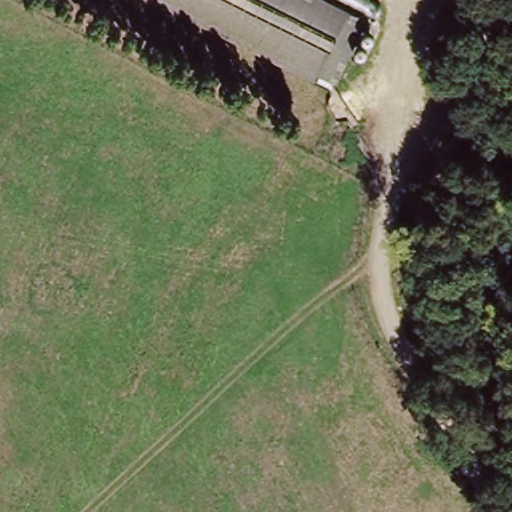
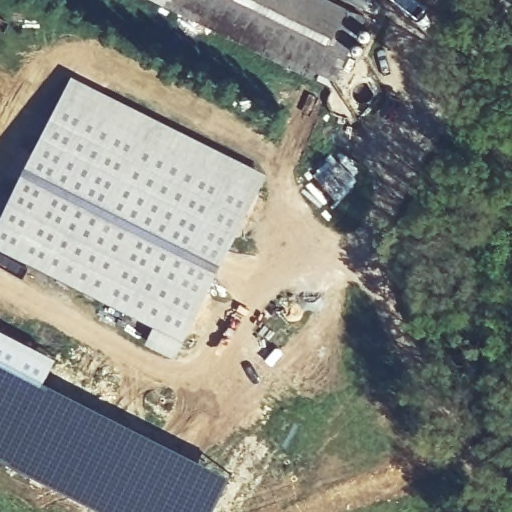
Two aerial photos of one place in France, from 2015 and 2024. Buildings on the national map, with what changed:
unchanged [(312,77),(158,0),(316,0),(345,15),(312,77)]
new [(0,247),(0,225),(75,76),(270,174),(177,358),(147,343),(157,324),(0,247)]
new [(49,377),(159,433),(232,473),(214,512),(109,512),(86,501),(0,454),(0,324),(60,355),(49,377)]

